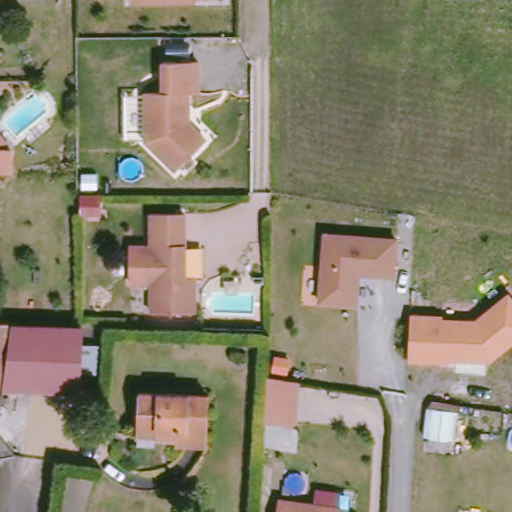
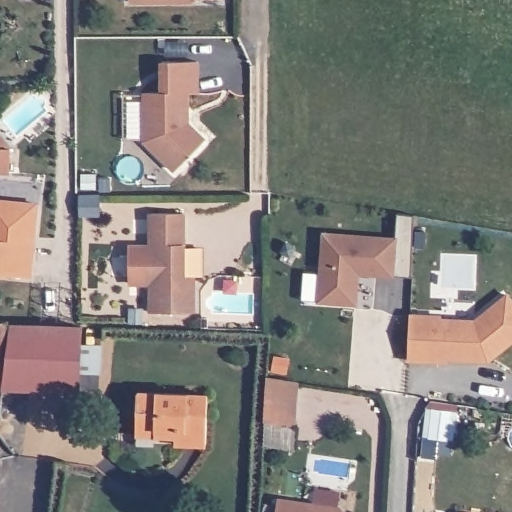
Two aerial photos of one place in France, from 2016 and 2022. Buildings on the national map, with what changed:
unchanged [(198,0),(198,5),(131,6),(130,0),(198,0)]
unchanged [(144,141),(143,91),(160,91),(160,61),(197,60),(198,93),(190,93),(190,105),(183,110),(183,119),(204,139),(174,169),(144,141)]
new [(0,173),(0,135),(12,149),(11,173),(0,173)]
new [(0,274),(0,198),(39,203),(32,276),(0,274)]
unchanged [(151,215),(183,214),(185,278),(196,278),(196,314),(152,314),(151,215)]
unchanged [(407,244),(405,281),(365,279),(365,289),(370,289),(369,310),(333,309),(336,240),(407,244)]
unchanged [(152,285),(131,286),(131,245),(151,245),(152,285)]
unchanged [(451,326),(485,328),(512,306),(512,355),(499,367),(450,364),(450,367),(419,366),(420,351),(421,322),(451,323),(451,326)]
unchanged [(7,391),(5,403),(0,402),(0,323),(15,324),(7,391)]
unchanged [(103,377),(84,376),(82,394),(7,391),(15,324),(88,327),(86,349),(105,349),(103,377)]
unchanged [(266,419),(268,377),(297,381),(295,424),(296,452),(263,446),(266,419)]
unchanged [(136,429),(137,393),(207,397),(205,446),(183,444),(183,438),(153,436),(136,435),(136,429)]
unchanged [(0,459),(0,429),(7,430),(6,439),(3,459),(0,459)]
unchanged [(3,459),(0,477),(0,459),(3,459)]
unchanged [(276,502),(338,511),(338,512),(274,512),(276,502)]

